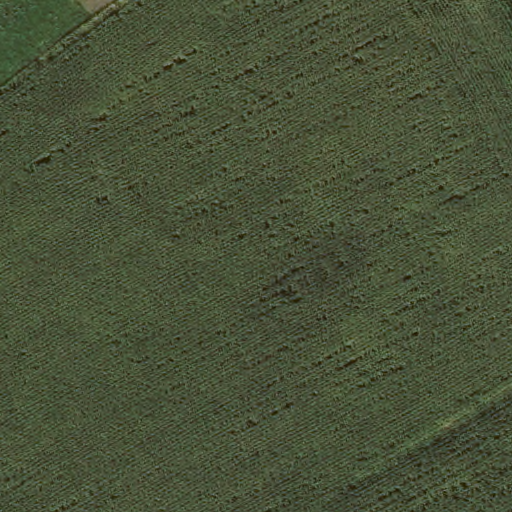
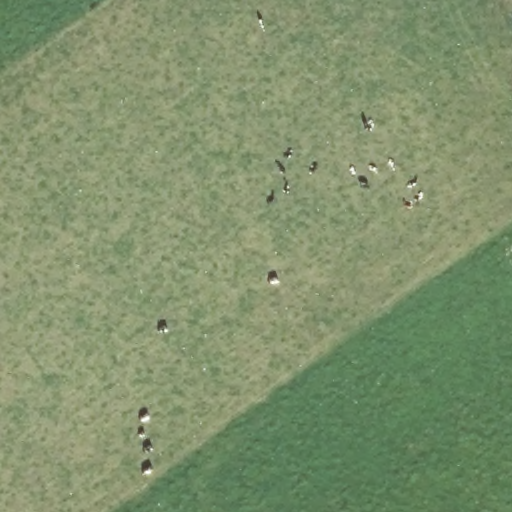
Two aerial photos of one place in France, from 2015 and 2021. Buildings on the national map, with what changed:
[]

